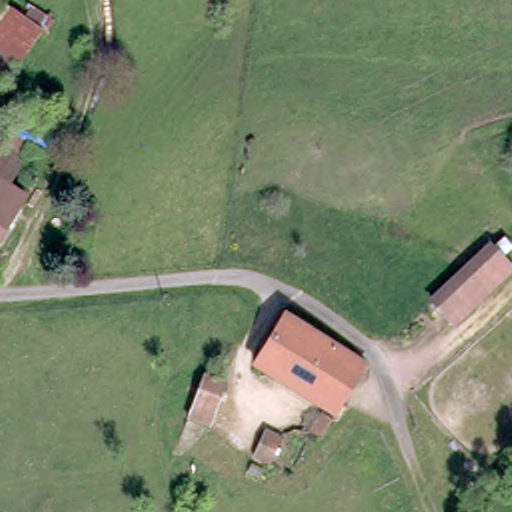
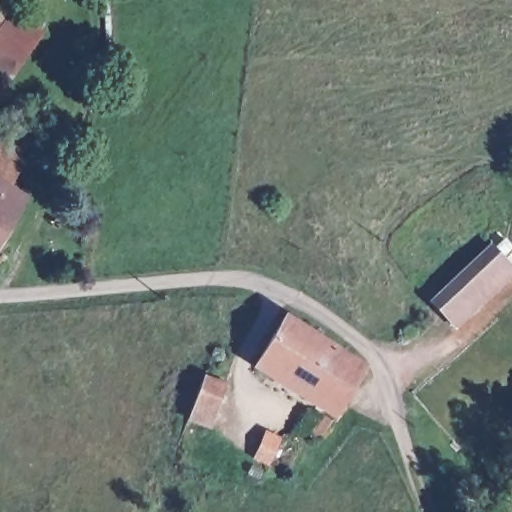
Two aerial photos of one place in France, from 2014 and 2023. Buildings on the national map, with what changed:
unchanged [(0,72),(0,0),(4,0),(41,28),(6,77),(0,72)]
unchanged [(0,151),(23,165),(6,190),(21,201),(0,236),(0,151)]
unchanged [(494,238),(512,263),(512,271),(454,327),(428,296),(494,238)]
unchanged [(282,314),(359,364),(329,412),(251,363),(282,314)]
unchanged [(186,407),(196,378),(208,382),(210,378),(221,383),(208,417),(186,407)]
unchanged [(268,425),(255,446),(245,443),(258,419),(268,425)]

